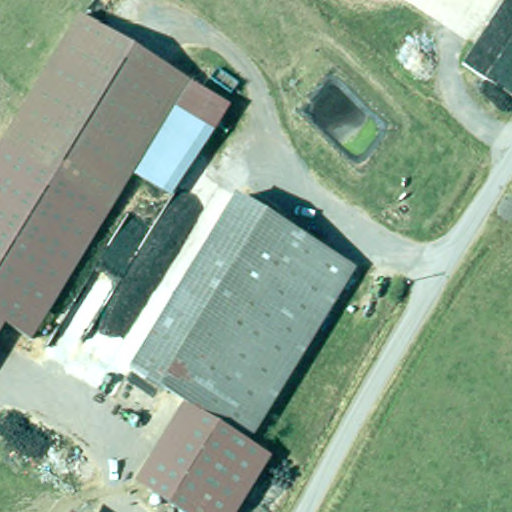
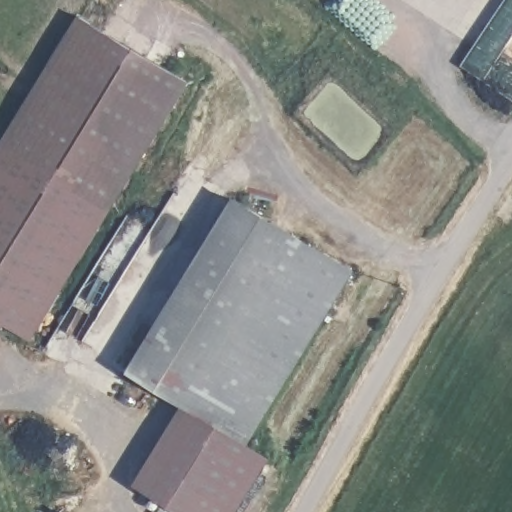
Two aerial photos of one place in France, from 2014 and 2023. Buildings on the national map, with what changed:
unchanged [(73,21),(183,86),(104,216),(0,153),(0,141),(73,21)]
demolished [(228,111),(172,197),(133,176),(186,88),(228,111)]
unchanged [(33,338),(2,321),(0,324),(0,153),(104,216),(33,338)]
unchanged [(247,443),(181,402),(129,370),(234,199),(352,272),(247,443)]
unchanged [(247,443),(268,456),(236,512),(182,512),(133,483),(181,402),(247,443)]

